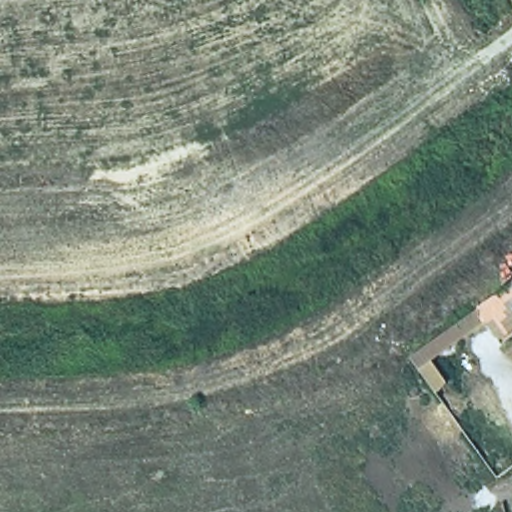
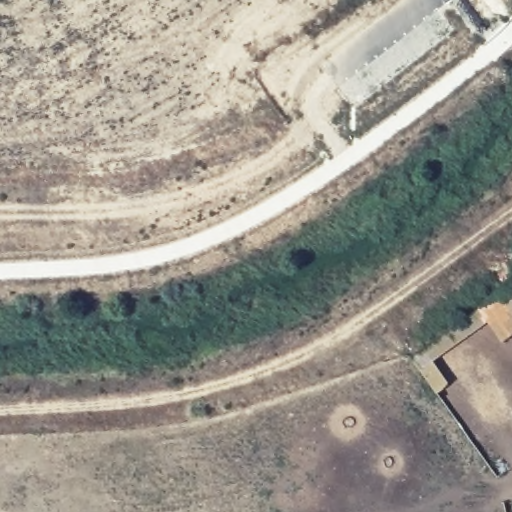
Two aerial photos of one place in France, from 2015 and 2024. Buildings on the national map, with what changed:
unchanged [(483,325),(474,315),(476,314),(512,289),(512,342),(502,350),(483,325)]
unchanged [(429,363),(443,384),(431,394),(407,360),(474,315),(483,325),(429,363)]

